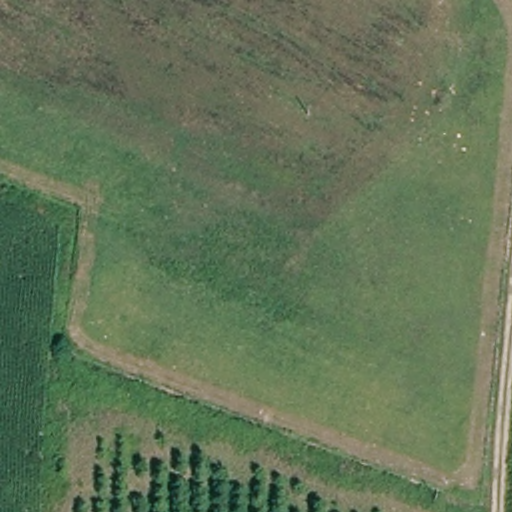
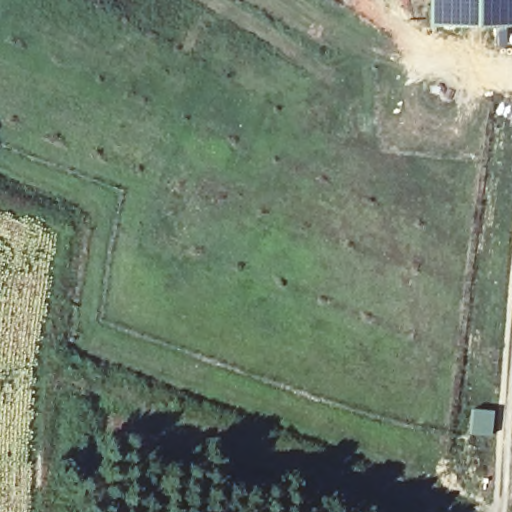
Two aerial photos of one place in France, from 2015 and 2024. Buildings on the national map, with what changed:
new [(430,24),(429,0),(512,0),(512,25),(430,24)]

